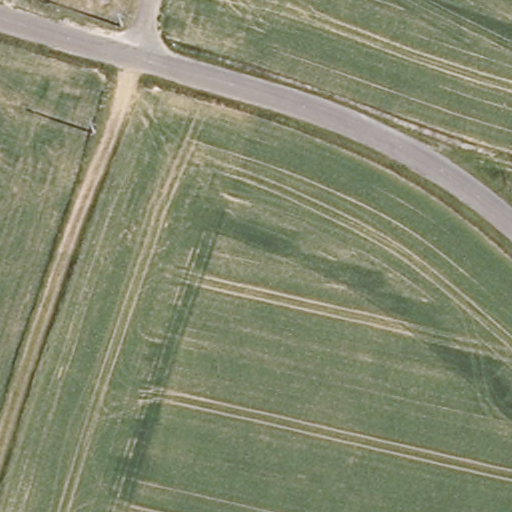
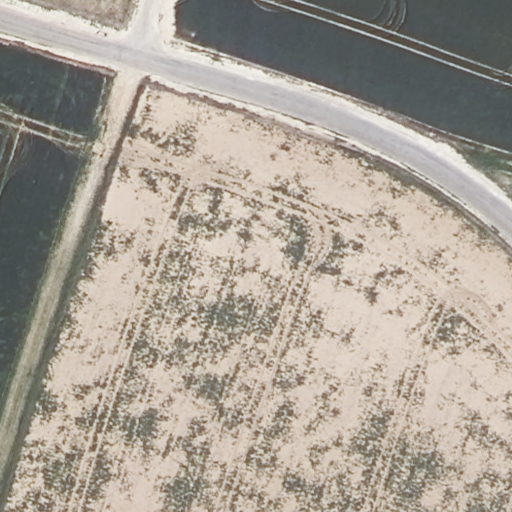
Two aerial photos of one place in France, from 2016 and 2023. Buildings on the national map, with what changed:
unchanged [(113,2),(128,5),(125,17),(110,14),(113,2)]

